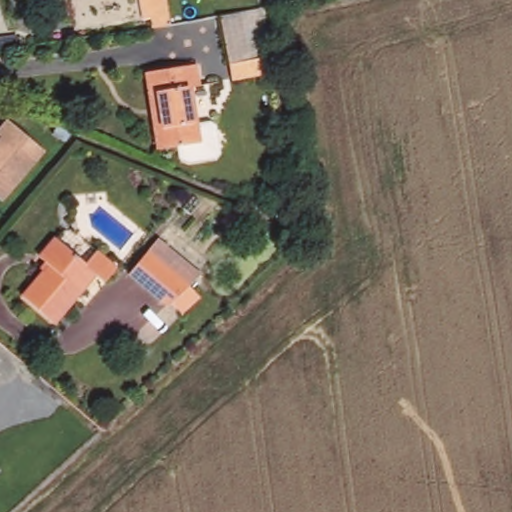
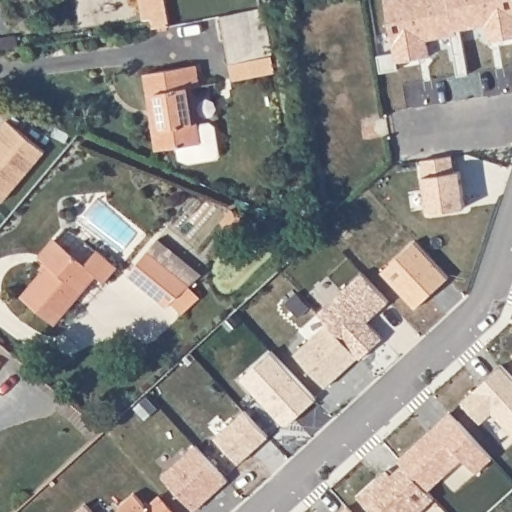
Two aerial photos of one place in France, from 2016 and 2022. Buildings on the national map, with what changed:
unchanged [(171,26),(153,29),(148,0),(166,0),(171,26)]
unchanged [(285,2),(285,0),(294,0),(285,2)]
unchanged [(263,7),(269,42),(255,45),(258,61),(229,66),(220,16),(249,10),(263,7)]
unchanged [(19,47),(0,50),(0,37),(17,35),(19,47)]
unchanged [(213,158),(189,162),(177,157),(175,147),(162,149),(153,150),(146,110),(140,74),(192,65),(195,86),(188,87),(194,125),(208,122),(212,126),(217,153),(213,158)]
unchanged [(0,137),(0,127),(7,120),(44,152),(3,202),(0,200),(0,138),(0,137)]
unchanged [(57,127),(70,134),(65,142),(53,135),(57,127)]
new [(424,175),(422,160),(452,155),(456,170),(459,170),(464,205),(429,211),(424,175)]
unchanged [(48,265),(39,257),(54,237),(85,264),(97,251),(118,268),(105,283),(96,275),(54,325),(21,296),(48,265)]
new [(414,241),(449,277),(415,307),(382,272),(414,241)]
unchanged [(153,246),(194,281),(172,302),(134,270),(153,246)]
new [(318,313),(362,273),(389,302),(376,313),(373,310),(363,318),(382,339),(361,360),(359,357),(318,313)]
new [(327,324),(358,355),(325,387),(297,353),(327,324)]
new [(317,400),(285,428),(242,379),(272,352),(317,400)]
new [(512,376),(512,433),(493,412),(479,422),(461,401),(501,365),(512,376)]
new [(269,437),(239,464),(215,438),(245,411),(269,437)]
new [(399,461),(449,415),(493,458),(455,492),(441,479),(426,491),(404,466),(399,461)]
new [(163,476),(196,445),(229,480),(195,510),(163,476)]
new [(388,470),(393,475),(404,466),(426,491),(433,499),(418,512),(373,512),(358,496),(388,470)]
new [(118,506),(134,492),(148,506),(160,495),(176,512),(119,512),(121,510),(118,506)]
new [(94,512),(76,512),(86,503),(94,512)]
new [(351,512),(343,512),(348,508),(351,512)]

